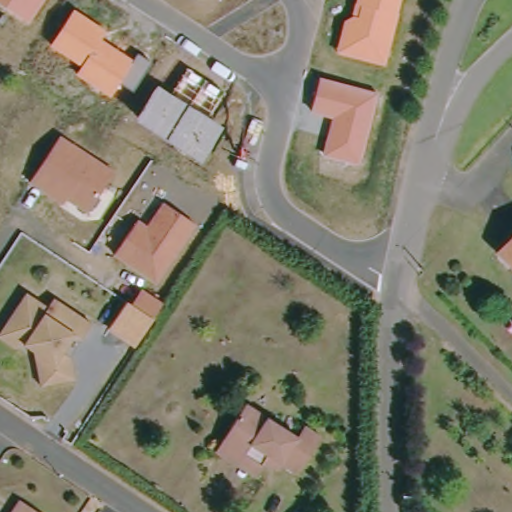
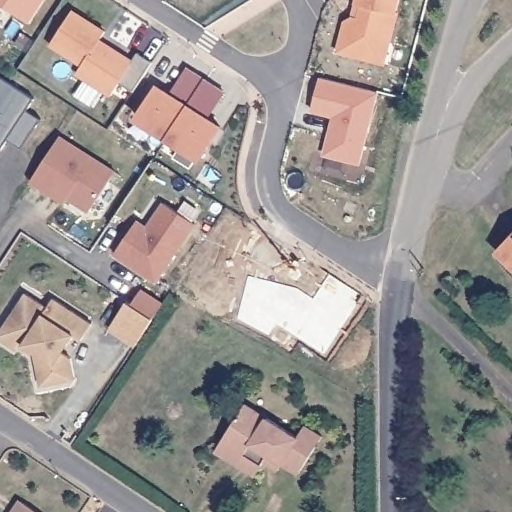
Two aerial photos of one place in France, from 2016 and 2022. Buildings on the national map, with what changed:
unchanged [(26,25),(0,7),(0,0),(44,0),(26,25)]
unchanged [(385,66),(336,54),(344,19),(351,16),(355,0),(401,0),(385,66)]
unchanged [(108,32),(103,40),(133,58),(138,52),(151,61),(133,91),(121,82),(110,96),(76,73),(79,68),(50,47),(75,9),(108,32)]
unchanged [(169,92),(186,66),(221,90),(205,117),(222,127),(201,163),(134,118),(155,85),(169,92)]
new [(0,76),(34,98),(26,110),(38,118),(21,146),(8,138),(0,150),(0,76)]
unchanged [(377,93),(359,162),(323,152),(332,117),(310,109),(321,77),(377,93)]
unchanged [(113,170),(86,213),(64,200),(61,204),(30,182),(60,137),(113,170)]
unchanged [(148,225),(164,201),(196,224),(154,286),(112,254),(138,218),(148,225)]
unchanged [(507,254),(512,249),(512,259),(507,254)]
unchanged [(161,302),(134,345),(107,327),(126,299),(131,303),(141,288),(161,302)]
unchanged [(49,392),(41,356),(25,345),(23,332),(13,328),(34,295),(55,309),(61,301),(98,327),(89,342),(83,339),(76,347),(69,348),(68,356),(81,364),(85,385),(49,392)]
unchanged [(217,452),(223,444),(249,405),(301,438),(309,426),(327,439),(301,476),(286,466),(280,472),(270,465),(264,470),(257,479),(217,452)]
unchanged [(40,512),(15,512),(23,501),(40,512)]

